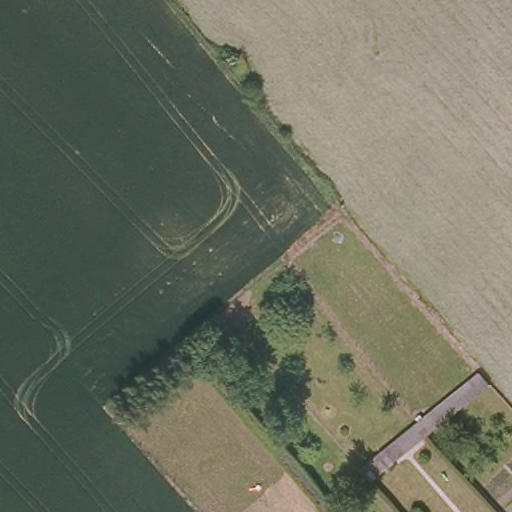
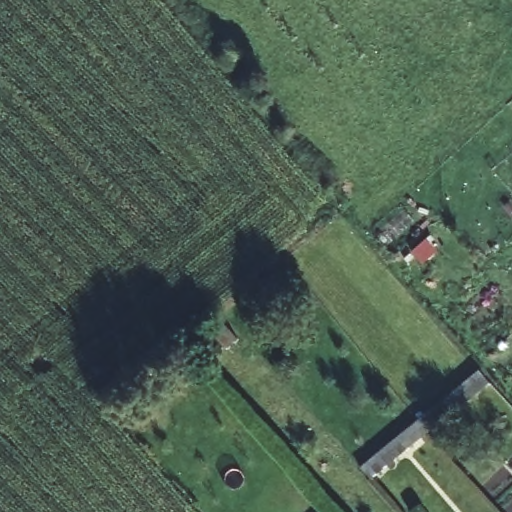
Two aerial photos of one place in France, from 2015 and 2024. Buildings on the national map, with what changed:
unchanged [(471,368),(483,381),(426,433),(415,421),(471,368)]
unchanged [(426,433),(371,484),(359,471),(415,421),(426,433)]

